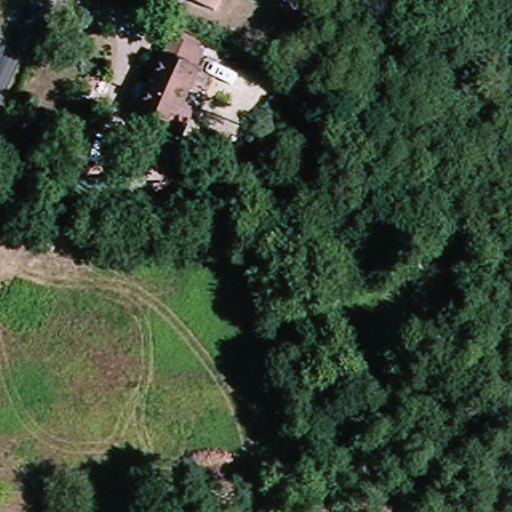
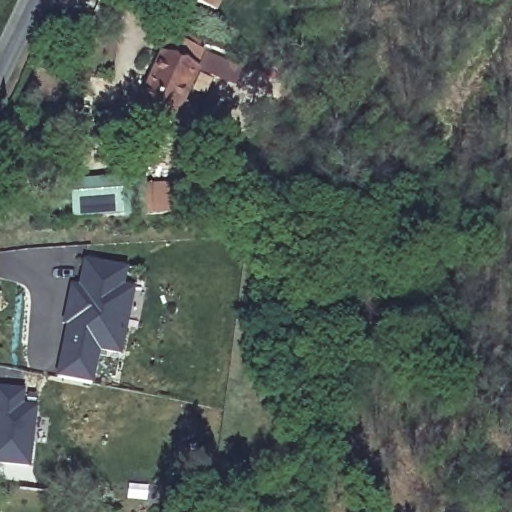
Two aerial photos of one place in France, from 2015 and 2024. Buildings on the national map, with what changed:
unchanged [(185,0),(225,0),(218,14),(185,0)]
unchanged [(187,108),(178,128),(134,109),(157,55),(164,58),(171,43),(197,56),(191,70),(177,103),(187,108)]
unchanged [(122,190),(148,190),(148,219),(122,219),(122,190)]
new [(57,377),(68,327),(63,326),(73,284),(79,285),(85,259),(128,270),(124,287),(135,290),(121,355),(100,352),(93,383),(57,377)]
new [(32,466),(0,463),(0,387),(25,390),(25,406),(37,407),(32,466)]

